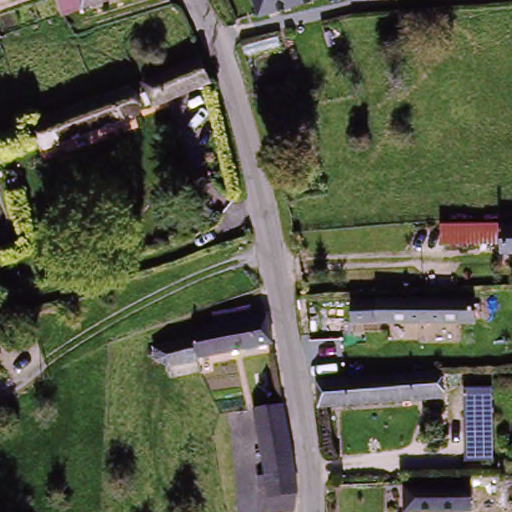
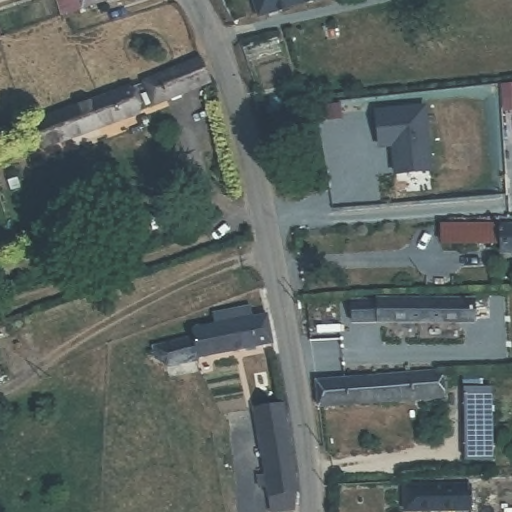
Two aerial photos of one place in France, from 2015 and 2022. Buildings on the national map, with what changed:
unchanged [(94,0),(87,2),(88,7),(70,13),(66,0),(94,0)]
unchanged [(249,0),(299,0),(249,3),(249,0)]
unchanged [(201,60),(211,81),(153,106),(144,84),(201,60)]
unchanged [(53,126),(50,120),(133,86),(142,106),(58,141),(53,126)]
new [(425,106),(432,169),(397,173),(394,145),(380,146),(376,111),(425,106)]
unchanged [(511,247),(441,250),(439,230),(509,225),(511,232),(511,247)]
unchanged [(512,254),(511,254),(511,247),(511,232),(512,231),(512,254)]
unchanged [(346,302),(363,301),(466,298),(483,297),(483,315),(467,317),(363,322),(346,323),(346,302)]
unchanged [(156,350),(179,345),(191,343),(191,339),(212,335),(210,325),(225,322),(240,319),(241,319),(243,329),(262,325),(264,334),(267,352),(209,363),(196,366),(196,371),(177,374),(168,376),(163,360),(151,361),(151,351),(156,350)]
unchanged [(442,404),(319,408),(318,385),(438,380),(439,398),(442,404)]
unchanged [(454,393),(488,391),(493,459),(464,461),(457,399),(454,393)]
unchanged [(271,487),(256,400),(284,395),(298,482),(271,487)]
unchanged [(470,489),(471,512),(406,512),(405,491),(470,489)]

